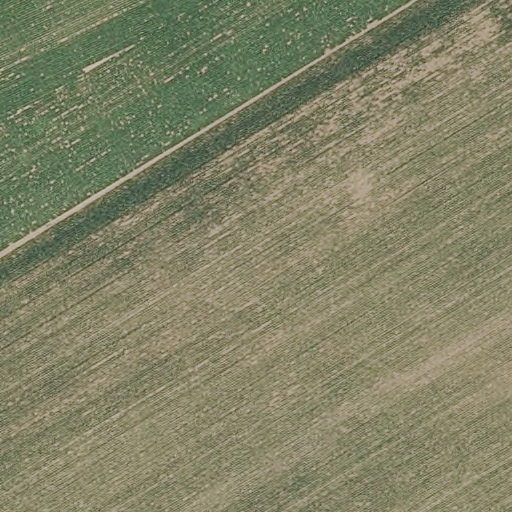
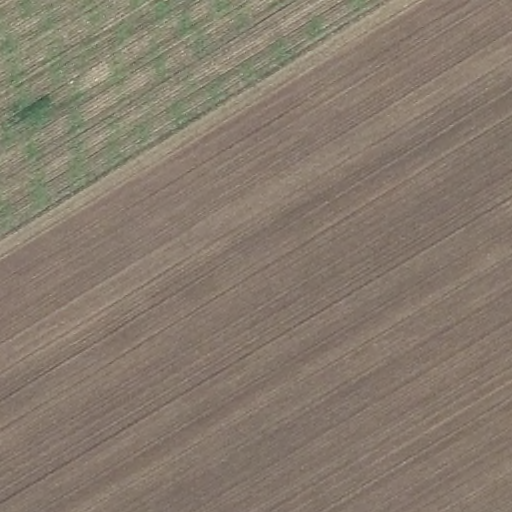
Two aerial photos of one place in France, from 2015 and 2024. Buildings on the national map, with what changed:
[]

